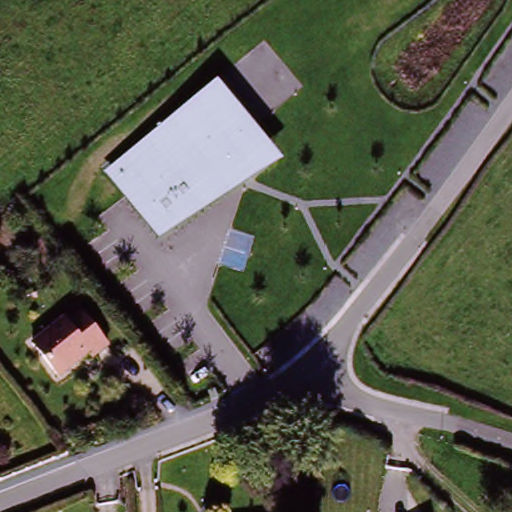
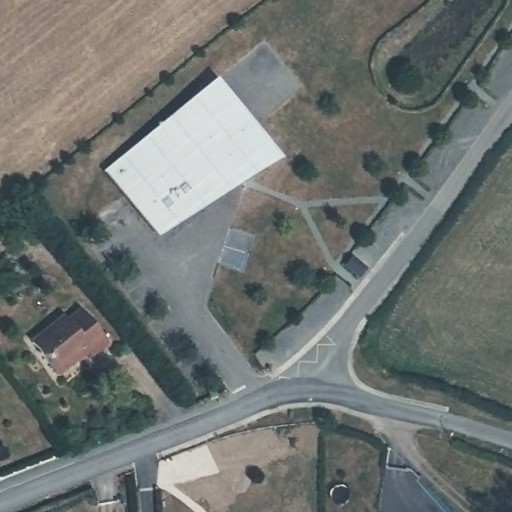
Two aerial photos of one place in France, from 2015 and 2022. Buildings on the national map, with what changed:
unchanged [(110,172),(220,78),(290,158),(168,233),(110,172)]
unchanged [(111,339),(95,351),(93,348),(62,373),(36,341),(69,315),(72,318),(86,306),(111,339)]

